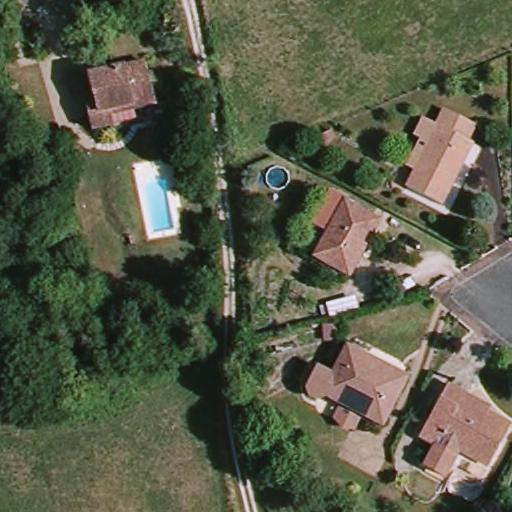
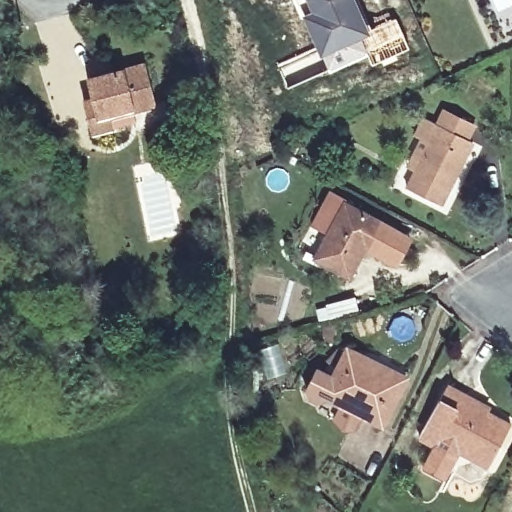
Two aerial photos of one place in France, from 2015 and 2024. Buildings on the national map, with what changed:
new [(368,27),(370,32),(360,38),(367,54),(341,64),(339,60),(347,55),(345,50),(330,57),(333,65),(327,69),(293,0),(356,0),(368,27)]
new [(370,32),(368,27),(395,16),(407,50),(372,64),(367,54),(360,38),(370,32)]
unchanged [(112,134),(92,139),(84,107),(92,105),(87,84),(146,70),(156,112),(135,117),(110,125),(112,134)]
unchanged [(424,120),(471,144),(438,206),(406,189),(415,173),(405,167),(419,140),(416,137),(424,120)]
unchanged [(315,258),(343,203),(371,218),(378,222),(368,240),(348,276),(315,258)]
unchanged [(335,427),(342,411),(326,403),(316,406),(310,403),(307,395),(317,375),(331,382),(346,352),(406,382),(382,431),(358,420),(351,435),(335,427)]
unchanged [(425,470),(434,452),(420,443),(447,392),(465,402),(488,415),(486,420),(507,430),(486,472),(457,457),(444,480),(425,470)]

